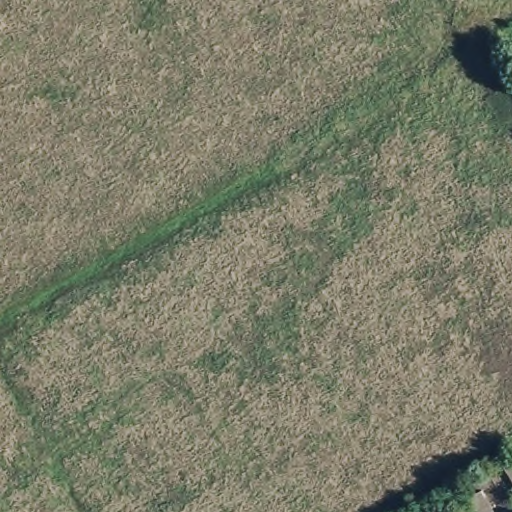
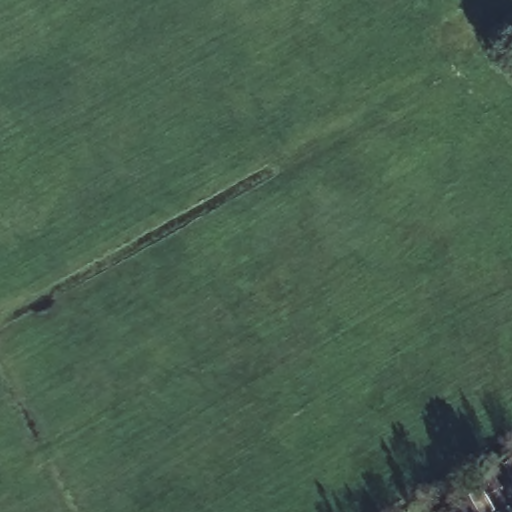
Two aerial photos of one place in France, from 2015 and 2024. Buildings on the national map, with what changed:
unchanged [(507,477),(512,473),(512,484),(507,477)]

